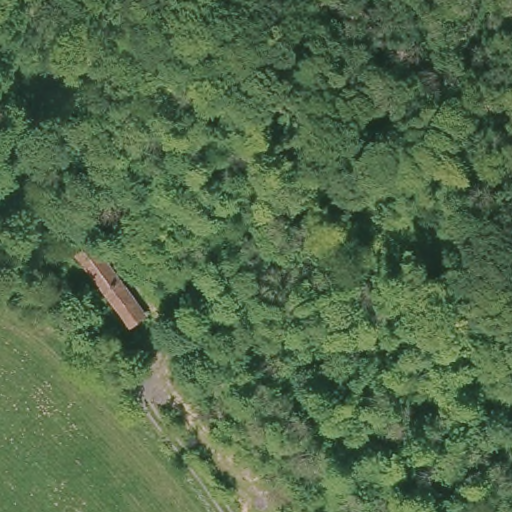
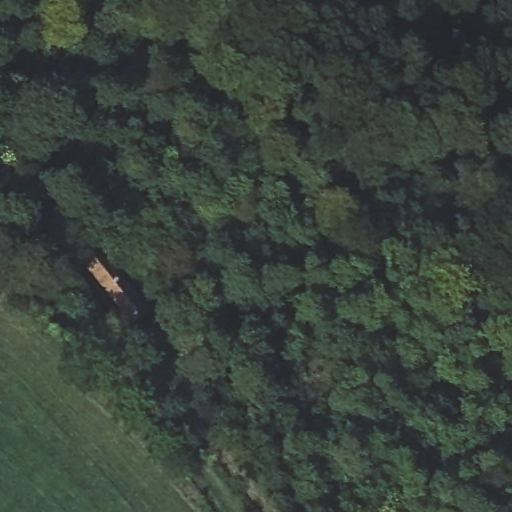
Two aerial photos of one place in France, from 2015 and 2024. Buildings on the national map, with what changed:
unchanged [(67,264),(83,246),(149,304),(135,321),(131,318),(67,264)]

